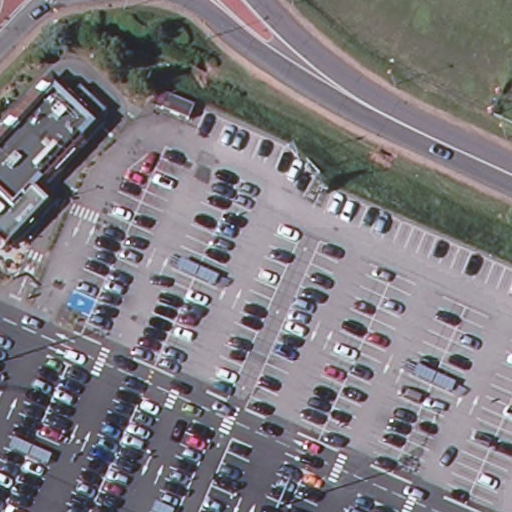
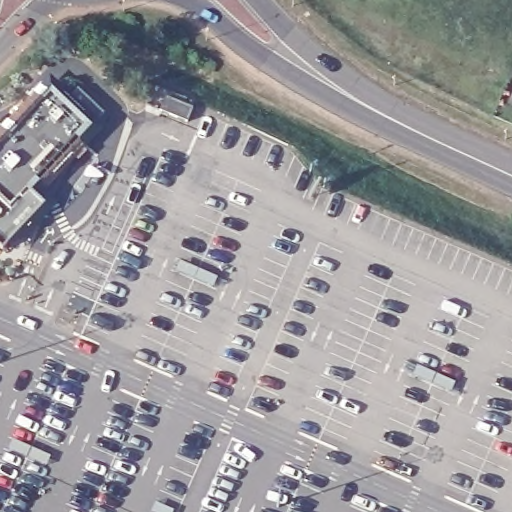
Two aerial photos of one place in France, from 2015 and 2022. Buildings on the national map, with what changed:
unchanged [(73,170),(50,194),(47,191),(18,222),(0,205),(0,161),(61,96),(74,110),(86,98),(95,106),(99,102),(102,102),(105,106),(105,108),(101,112),(112,122),(70,167),(73,170)]

